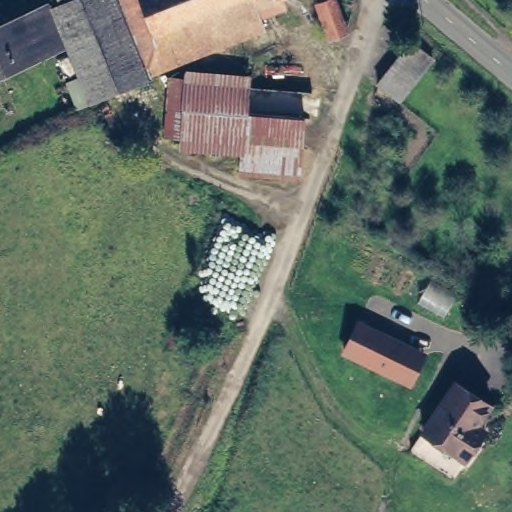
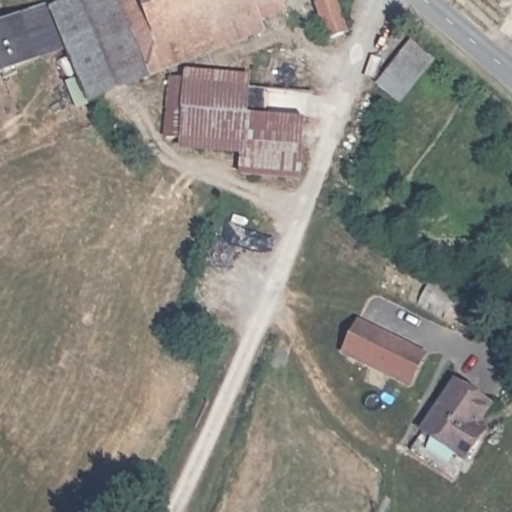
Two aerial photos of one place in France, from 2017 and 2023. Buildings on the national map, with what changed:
unchanged [(102,0),(279,0),(282,7),(258,19),(264,31),(91,100),(59,17),(102,0)]
unchanged [(347,33),(332,39),(320,5),(332,0),(336,0),(347,30),(347,33)]
unchanged [(0,73),(0,30),(50,9),(67,42),(0,73)]
unchanged [(429,58),(396,102),(374,84),(409,41),(429,58)]
unchanged [(212,140),(167,137),(172,76),(228,81),(227,107),(305,112),(302,169),(300,179),(241,174),(240,160),(211,160),(212,140)]
unchanged [(412,380),(396,372),(347,347),(360,320),(410,345),(425,353),(412,380)]
unchanged [(480,433),(467,450),(455,467),(415,438),(427,420),(462,370),(495,395),(482,412),(490,420),(480,433)]

